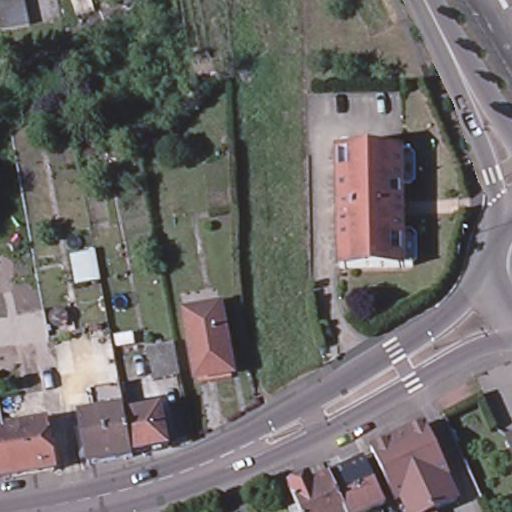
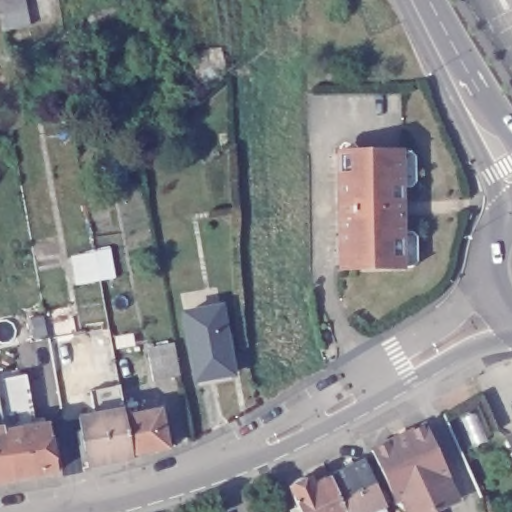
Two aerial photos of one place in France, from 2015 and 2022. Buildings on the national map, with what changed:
unchanged [(27,24),(0,29),(0,0),(22,0),(27,24)]
unchanged [(388,265),(337,266),(335,151),(377,150),(397,150),(399,265),(388,265)]
unchanged [(230,375),(192,382),(182,313),(219,306),(230,375)]
unchanged [(177,377),(149,382),(144,351),(172,345),(177,377)]
unchanged [(52,368),(57,394),(41,396),(37,371),(52,368)]
unchanged [(122,411),(130,453),(130,456),(85,464),(78,426),(80,426),(77,413),(121,405),(122,411)]
unchanged [(157,406),(165,443),(130,453),(122,411),(157,406)]
unchanged [(458,473),(454,475),(439,482),(416,432),(435,423),(458,473)]
unchanged [(45,424),(55,470),(10,479),(2,432),(45,424)]
unchanged [(1,427),(2,432),(10,479),(0,481),(0,427),(1,427)]
unchanged [(416,432),(439,482),(410,495),(410,496),(403,499),(380,449),(416,432)]
unchanged [(512,434),(512,456),(503,438),(512,434)]
unchanged [(375,512),(353,512),(336,475),(372,458),(373,457),(395,503),(393,504),(375,512)]
unchanged [(300,484),(300,483),(301,481),(302,479),(305,477),(307,476),(310,476),(312,476),(314,476),(317,476),(320,475),(322,482),(336,475),(353,512),(308,512),(295,486),(300,484)]
unchanged [(454,475),(465,499),(437,512),(417,512),(410,496),(410,495),(439,482),(454,475)]

